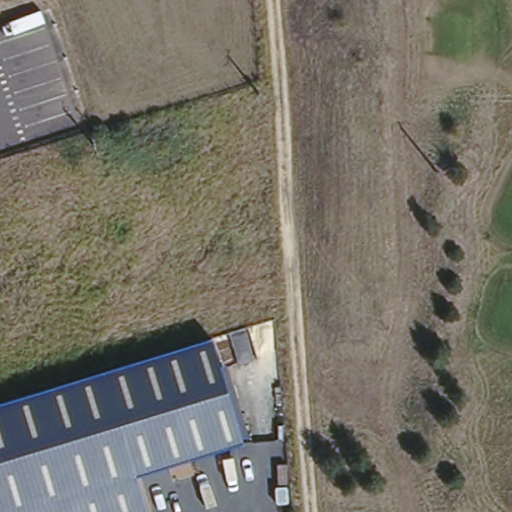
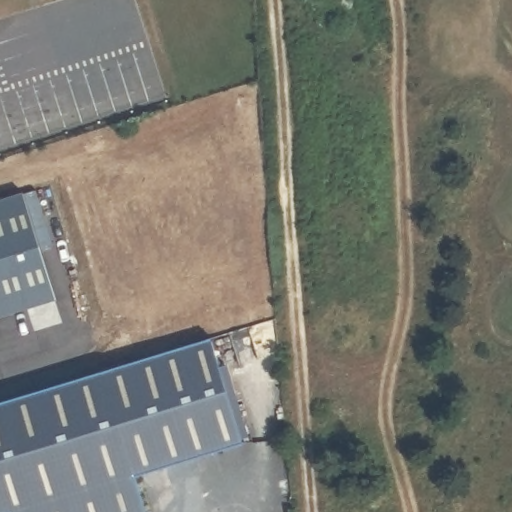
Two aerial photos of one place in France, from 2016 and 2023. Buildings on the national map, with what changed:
new [(59,286),(0,305),(0,192),(23,184),(59,286)]
unchanged [(211,337),(247,441),(137,475),(127,439),(120,414),(107,370),(211,337)]
unchanged [(120,414),(127,439),(147,512),(0,512),(0,401),(107,370),(120,414)]

